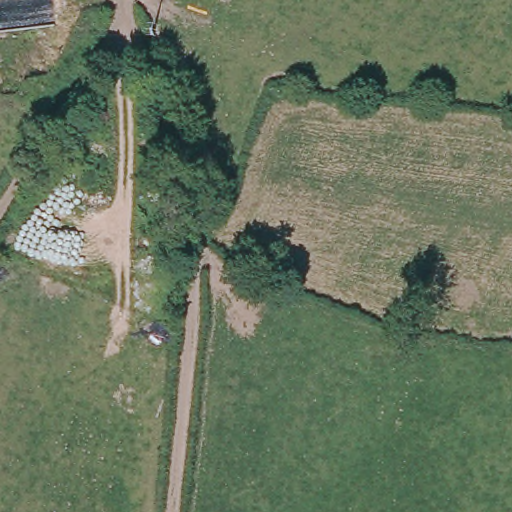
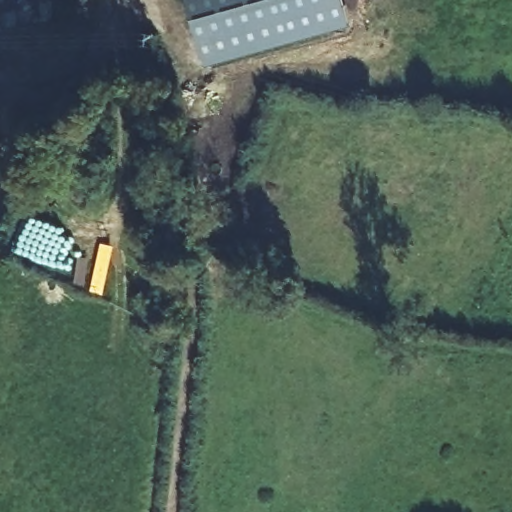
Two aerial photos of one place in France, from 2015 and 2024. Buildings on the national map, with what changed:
new [(352,22),(207,64),(188,0),(347,0),(352,22)]

